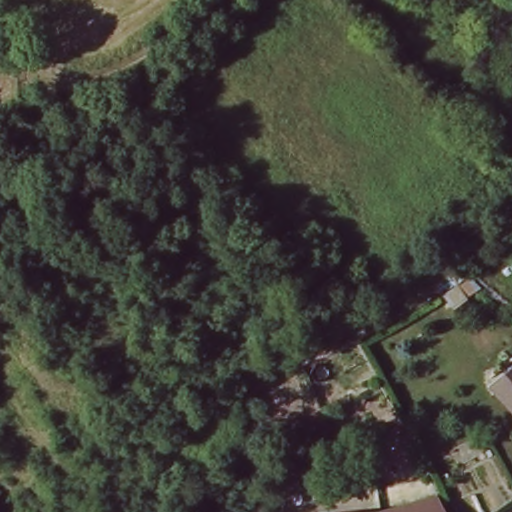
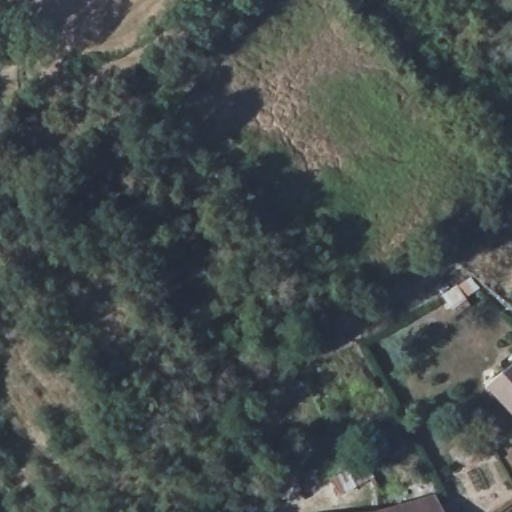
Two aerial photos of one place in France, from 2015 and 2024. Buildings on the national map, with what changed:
unchanged [(492,380),(512,363),(512,401),(492,380)]
unchanged [(369,477),(340,493),(332,479),(361,463),(369,477)]
unchanged [(443,512),(417,512),(417,510),(438,503),(443,512)]
unchanged [(417,512),(409,512),(417,510),(417,512)]

